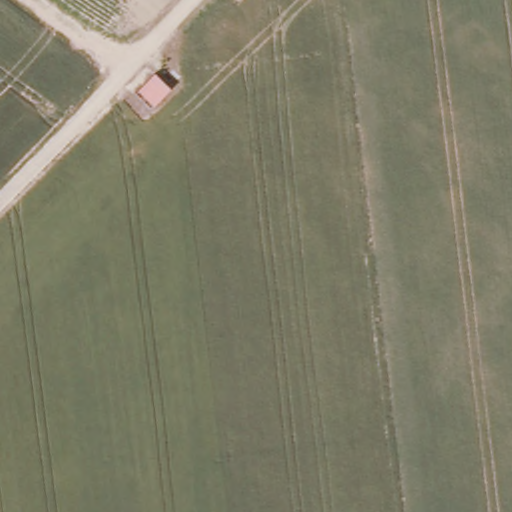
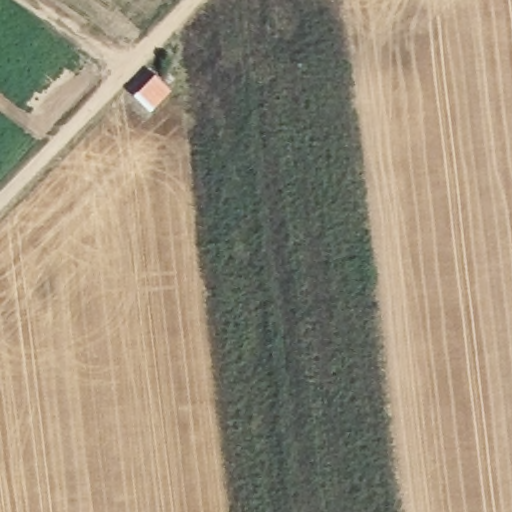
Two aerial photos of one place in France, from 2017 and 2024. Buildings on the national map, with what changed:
unchanged [(132,87),(157,67),(171,85),(150,106),(132,87)]

